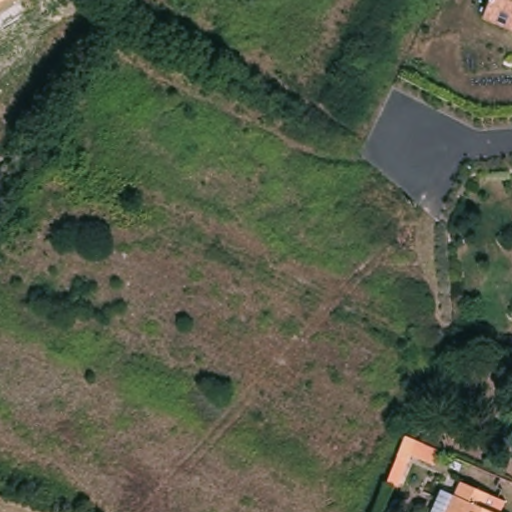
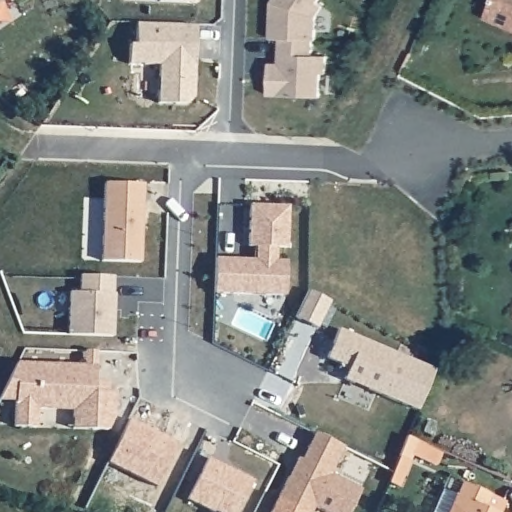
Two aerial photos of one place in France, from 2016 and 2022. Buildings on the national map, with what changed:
unchanged [(0,1),(0,0),(1,0),(0,1)]
new [(198,7),(160,6),(160,0),(198,0),(198,7)]
new [(269,65),(279,65),(280,41),(271,40),(272,12),(277,6),(281,1),(279,0),(321,0),(315,42),(312,42),(312,57),(326,58),(326,75),(321,75),(320,99),(268,96),(269,65)]
unchanged [(485,18),(492,0),(512,0),(512,30),(485,18)]
new [(158,65),(128,62),(129,44),(136,44),(136,22),(195,25),(194,96),(187,101),(157,100),(158,65)]
new [(105,182),(143,184),(140,262),(102,260),(105,182)]
new [(214,258),(254,260),(255,247),(247,246),(249,205),(287,207),(286,248),(275,248),(275,260),(285,261),(283,295),(213,293),(214,258)]
new [(67,291),(80,291),(80,276),(112,277),(112,292),(114,293),(112,337),(66,335),(67,291)]
new [(434,368),(417,409),(343,378),(348,368),(326,357),(337,327),(434,368)]
new [(35,425),(14,425),(17,398),(0,397),(0,395),(17,361),(85,365),(85,350),(96,351),(95,365),(95,373),(102,373),(107,373),(107,380),(115,381),(113,415),(106,428),(91,428),(72,427),(72,415),(73,408),(36,406),(35,425)]
new [(299,459),(312,432),(341,446),(327,473),(358,489),(346,512),(324,512),(312,505),(308,512),(303,512),(275,498),(286,476),(296,457),(299,459)]
unchanged [(408,460),(398,456),(406,435),(417,440),(408,460)]
unchanged [(455,495),(462,481),(505,501),(501,512),(431,512),(442,489),(455,495)]

